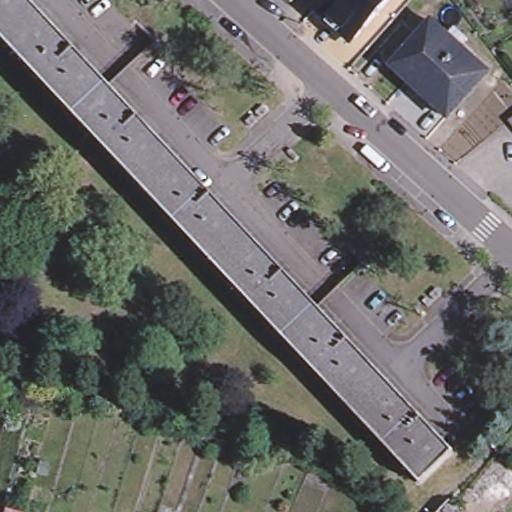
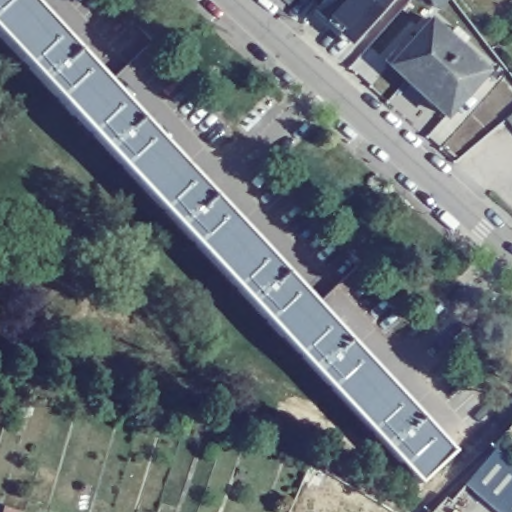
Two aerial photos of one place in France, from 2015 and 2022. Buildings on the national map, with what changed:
unchanged [(446,454),(413,486),(0,44),(0,0),(22,0),(446,454)]
unchanged [(425,18),(480,69),(440,111),(387,61),(425,18)]
unchanged [(512,108),(512,120),(507,113),(512,108)]
new [(500,450),(512,461),(512,512),(501,512),(469,485),(500,450)]
unchanged [(13,512),(2,512),(3,510),(13,512)]

